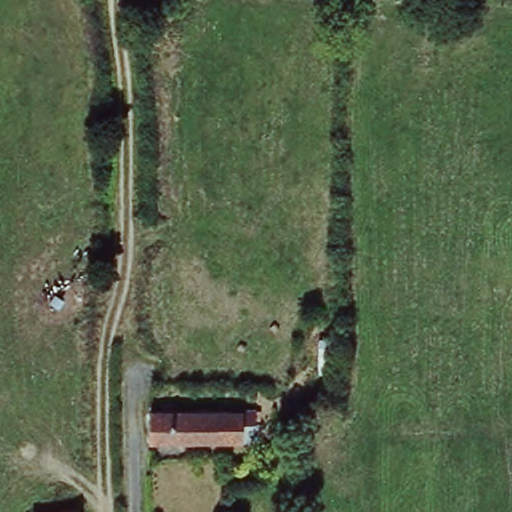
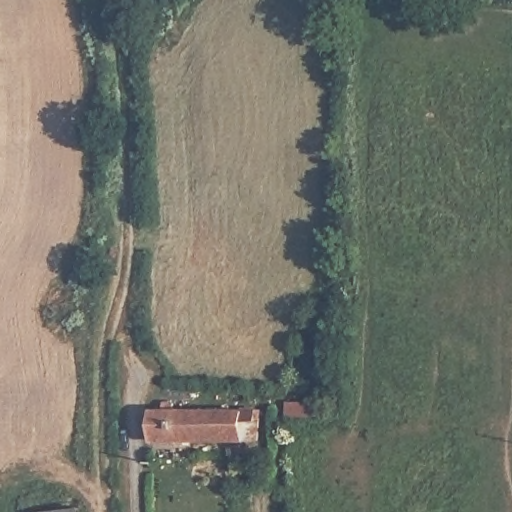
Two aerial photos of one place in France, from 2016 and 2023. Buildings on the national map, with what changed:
unchanged [(254,407),(254,428),(240,430),(239,442),(218,441),(147,440),(145,407),(254,407)]
unchanged [(72,512),(26,512),(25,509),(71,504),(72,512)]

